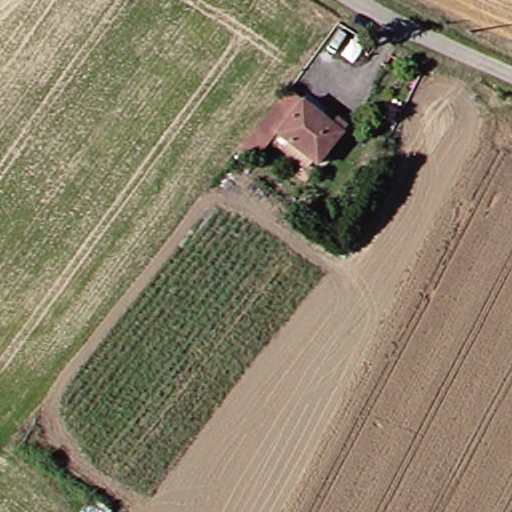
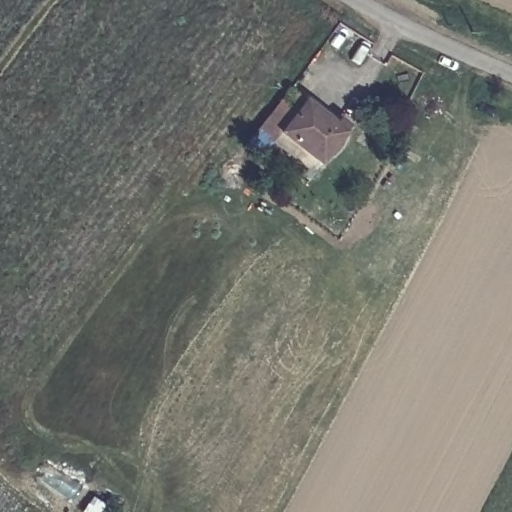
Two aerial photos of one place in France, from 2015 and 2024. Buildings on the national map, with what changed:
unchanged [(262,160),(247,146),(294,90),(311,97),(341,120),(344,118),(355,124),(351,132),(328,165),(283,132),(262,160)]

